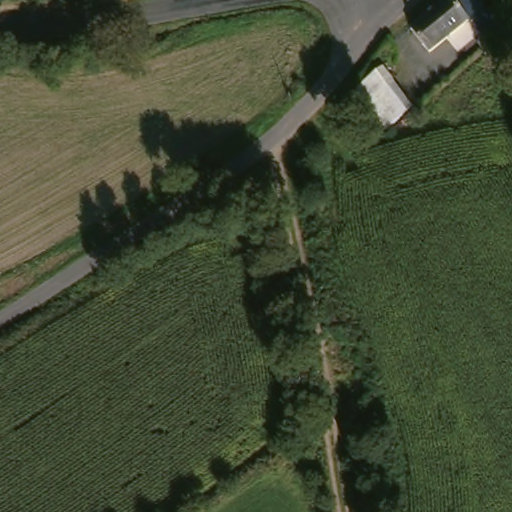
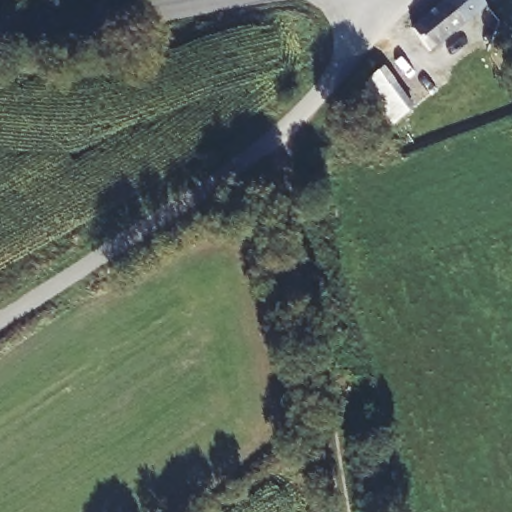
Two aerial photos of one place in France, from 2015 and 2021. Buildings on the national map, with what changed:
unchanged [(430,44),(411,20),(435,0),(481,0),(430,44)]
unchanged [(423,105),(389,129),(353,85),(390,61),(423,105)]

